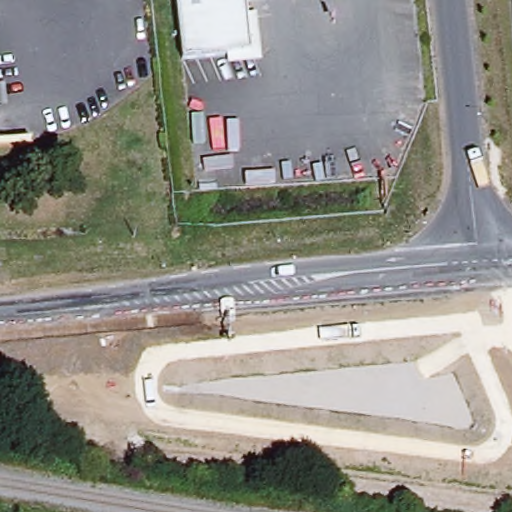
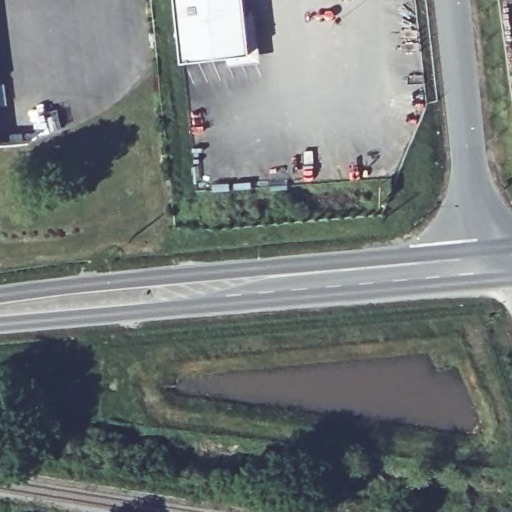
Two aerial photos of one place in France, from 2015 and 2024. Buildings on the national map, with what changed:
unchanged [(249,17),(254,59),(223,62),(185,66),(177,0),(247,0),(249,17)]

